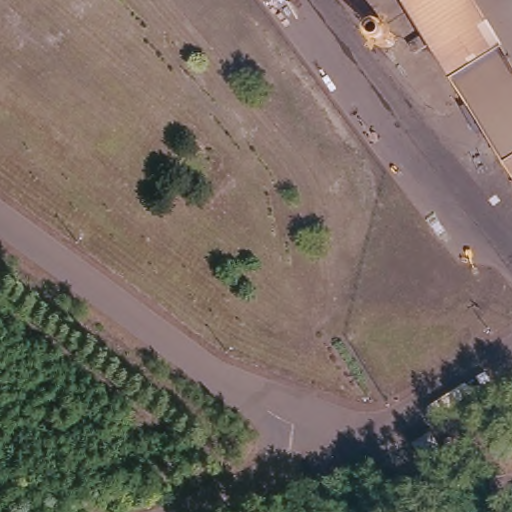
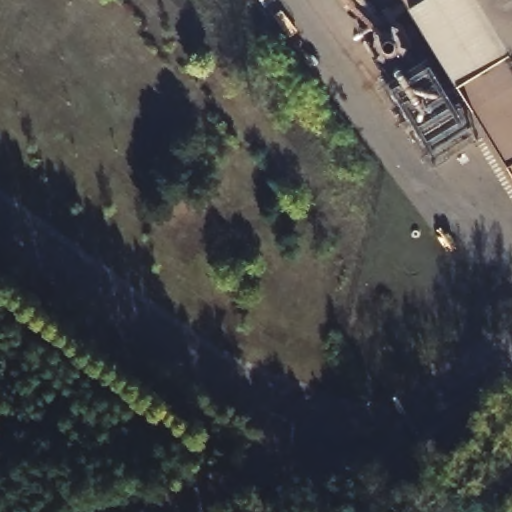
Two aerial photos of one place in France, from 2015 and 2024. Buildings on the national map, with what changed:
unchanged [(398,0),(512,0),(512,198),(398,0)]

